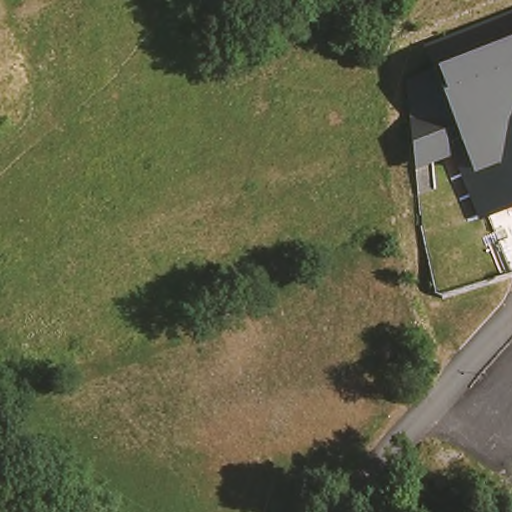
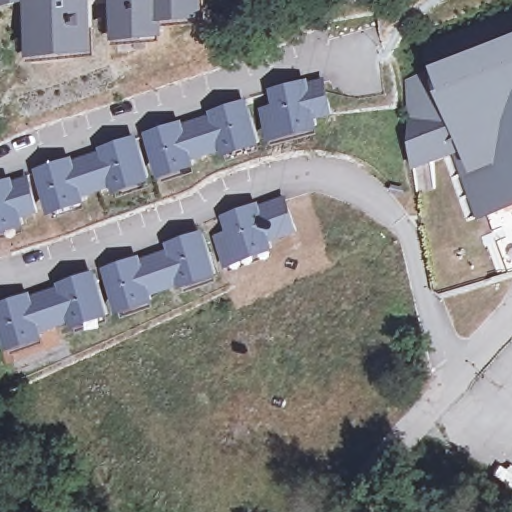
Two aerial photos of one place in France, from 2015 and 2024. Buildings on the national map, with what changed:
new [(0,7),(0,0),(24,0),(24,3),(0,7)]
new [(29,60),(24,3),(24,0),(93,0),(98,55),(29,60)]
new [(168,25),(168,39),(117,44),(112,0),(208,0),(209,20),(168,25)]
unchanged [(413,168),(400,69),(512,19),(512,203),(473,217),(451,156),(413,168)]
new [(306,80),(306,82),(324,78),(332,111),(316,116),(318,122),(271,135),(264,108),(277,105),(273,87),(306,80)]
new [(181,121),(181,125),(214,113),(214,111),(246,100),(259,139),(226,150),(226,146),(192,157),(193,160),(161,171),(148,132),(181,121)]
new [(70,157),(71,160),(104,149),(103,147),(136,136),(148,175),(116,185),(115,182),(82,192),(83,196),(50,207),(38,167),(70,157)]
new [(8,177),(9,180),(28,175),(38,207),(20,212),(23,219),(0,226),(0,180),(8,177)]
new [(254,200),(255,204),(283,194),(295,228),(269,237),(271,245),(226,261),(216,232),(228,227),(223,212),(254,200)]
new [(105,267),(138,256),(139,260),(173,248),(171,242),(203,231),(216,270),(183,281),(183,280),(149,291),(151,295),(118,306),(105,267)]
new [(28,293),(29,296),(63,285),(61,282),(94,271),(107,310),(74,321),(73,317),(40,328),(41,332),(8,343),(0,318),(0,303),(28,293)]

